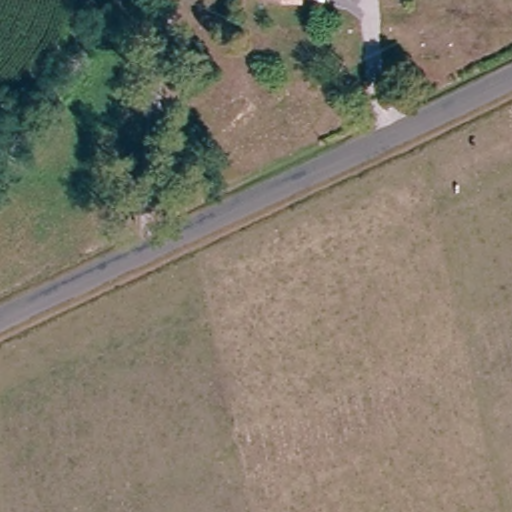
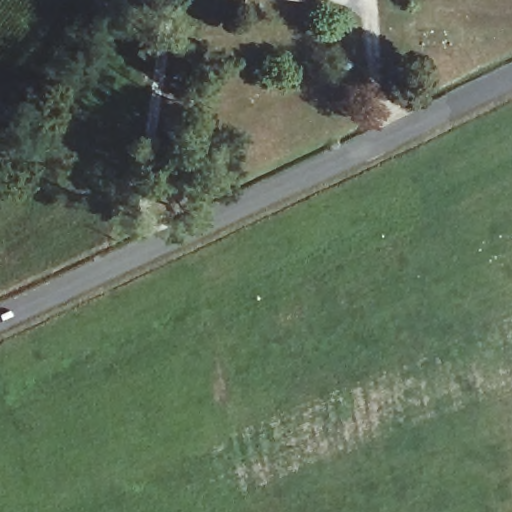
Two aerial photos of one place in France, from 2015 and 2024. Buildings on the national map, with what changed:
unchanged [(227,9),(205,7),(206,0),(229,0),(227,9)]

